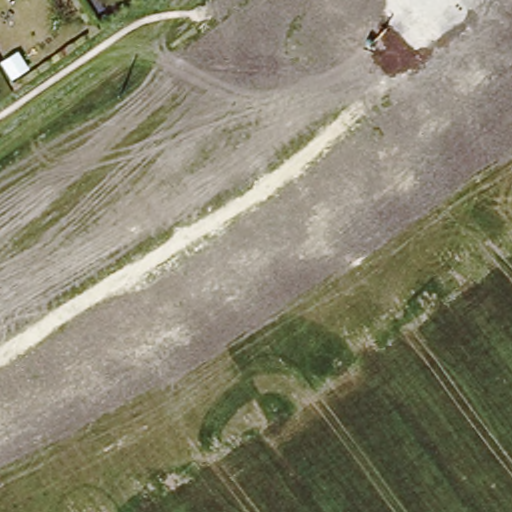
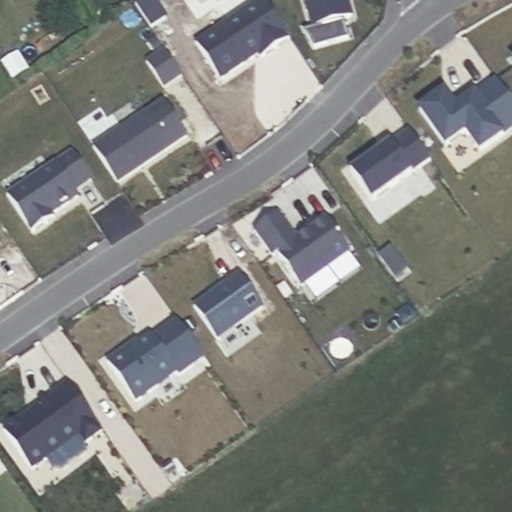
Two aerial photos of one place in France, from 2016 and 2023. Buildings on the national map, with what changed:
new [(259,0),(263,0),(290,39),(261,59),(259,56),(220,82),(196,44),(259,0)]
new [(353,17),(313,28),(305,0),(348,0),(353,17)]
new [(457,105),(474,92),(477,95),(495,79),(512,102),(512,130),(503,137),(504,136),(479,152),(466,133),(444,147),(418,109),(444,89),(457,105)]
new [(163,100),(188,138),(118,184),(93,146),(163,100)]
new [(390,142),(392,144),(409,131),(429,160),(412,173),(411,172),(371,201),(351,171),(390,142)]
new [(55,162),(71,151),(92,182),(77,194),(79,196),(52,216),(54,218),(31,233),(6,195),(55,162)]
new [(280,212),(298,236),(326,218),(351,253),(302,287),(277,252),(272,256),(254,230),(280,212)]
new [(238,274),(264,308),(218,340),(193,307),(238,274)]
new [(136,339),(141,341),(151,334),(153,335),(176,320),(203,358),(180,375),(176,373),(136,402),(107,362),(136,339)]
new [(68,384),(103,432),(85,445),(79,435),(33,470),(3,431),(68,384)]

